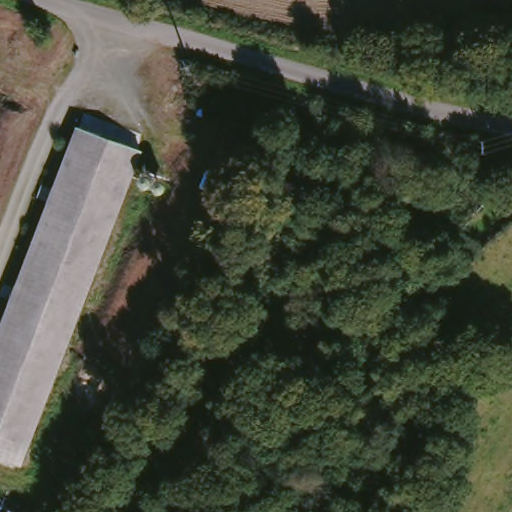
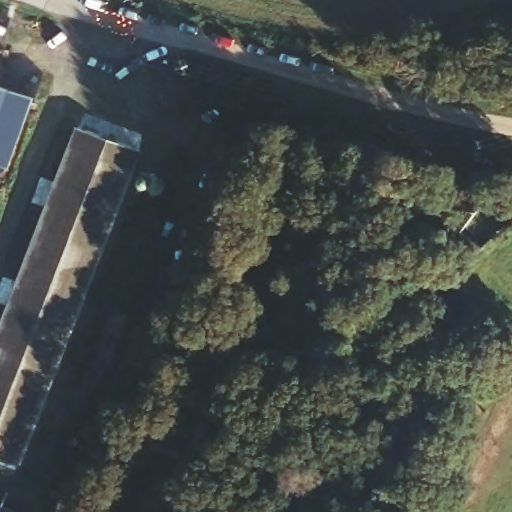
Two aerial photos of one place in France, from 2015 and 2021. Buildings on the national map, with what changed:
new [(8,169),(0,166),(0,87),(32,97),(8,169)]
unchanged [(144,150),(21,475),(0,466),(0,330),(77,125),(144,150)]

